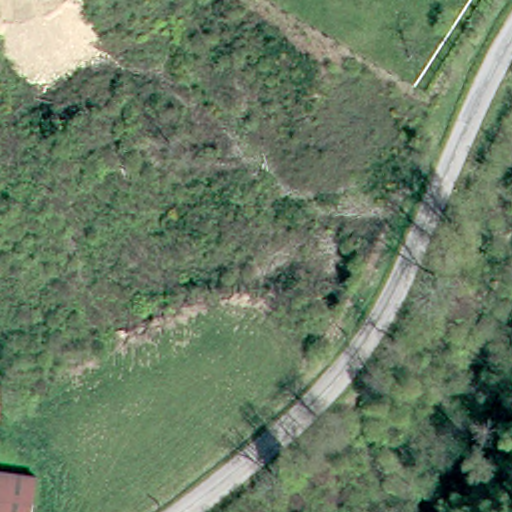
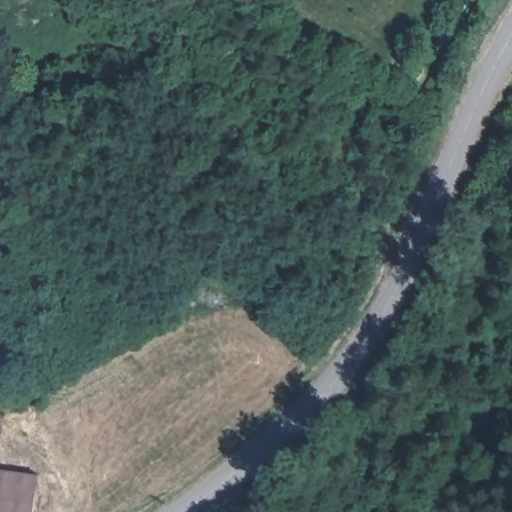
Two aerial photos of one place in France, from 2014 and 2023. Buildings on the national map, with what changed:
unchanged [(35,487),(31,512),(0,512),(0,480),(35,487)]

